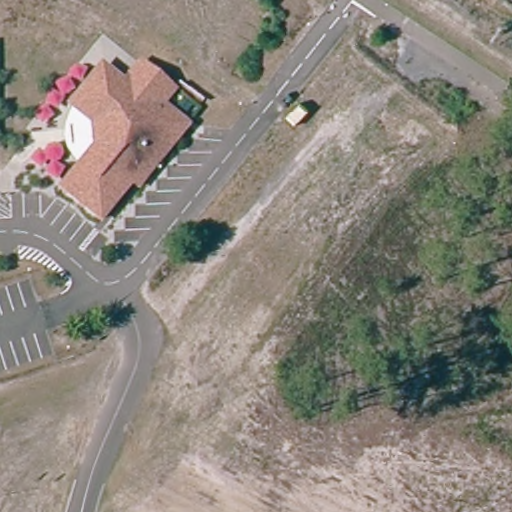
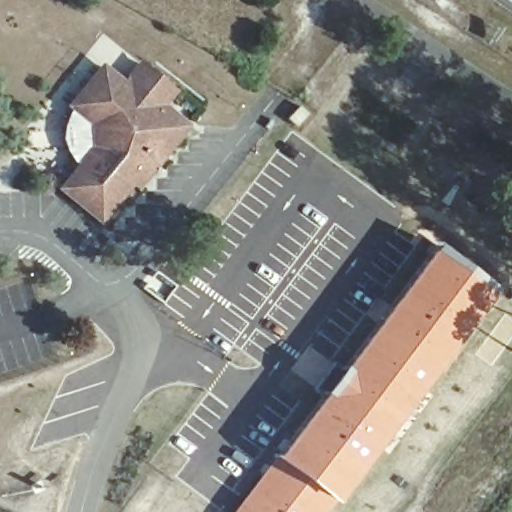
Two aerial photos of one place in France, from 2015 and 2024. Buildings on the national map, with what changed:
unchanged [(176,91),(165,106),(190,126),(140,187),(134,182),(104,220),(65,188),(81,166),(97,146),(95,123),(75,108),(73,106),(105,66),(127,84),(142,65),(176,91)]
unchanged [(95,123),(97,146),(81,166),(79,164),(72,156),(67,146),(65,138),(65,128),(72,111),(75,108),(95,123)]
new [(330,375),(432,243),(491,289),(332,504),(300,481),(271,457),(330,375)]
new [(271,457),(300,481),(332,504),(326,512),(232,512),(271,457)]

